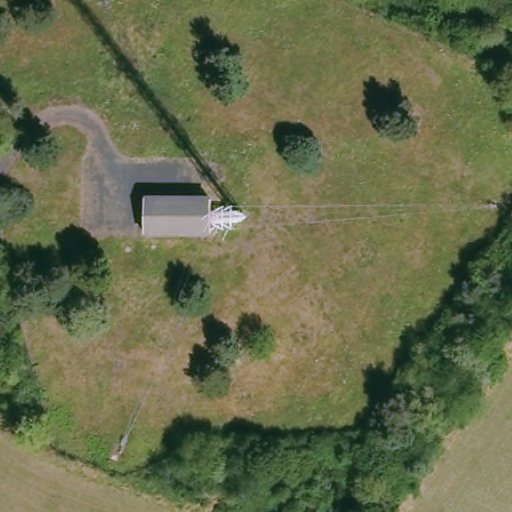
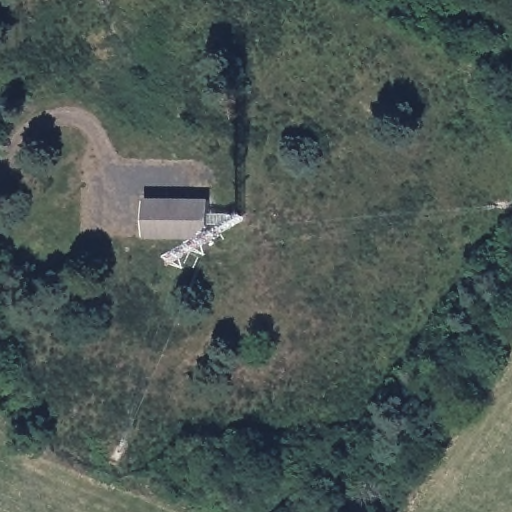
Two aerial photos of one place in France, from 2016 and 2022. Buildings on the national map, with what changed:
unchanged [(145,199),(210,199),(210,234),(145,233),(145,199)]

